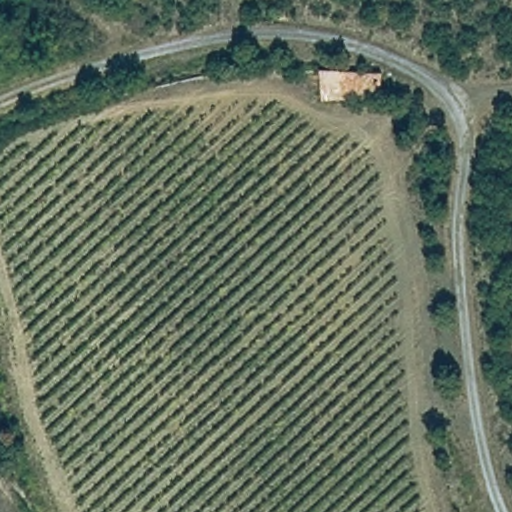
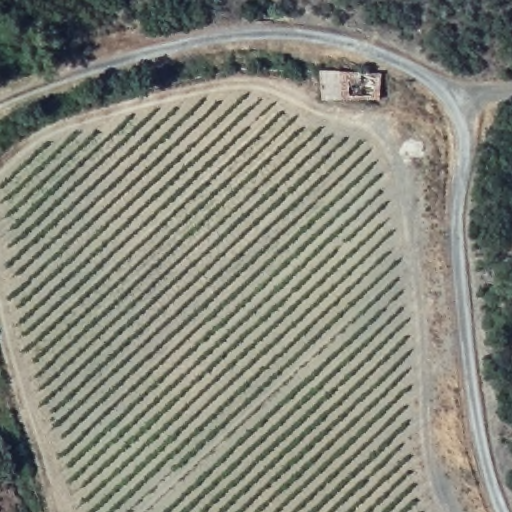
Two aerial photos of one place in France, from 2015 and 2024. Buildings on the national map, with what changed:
unchanged [(382,97),(321,99),(321,72),(381,72),(382,97)]

